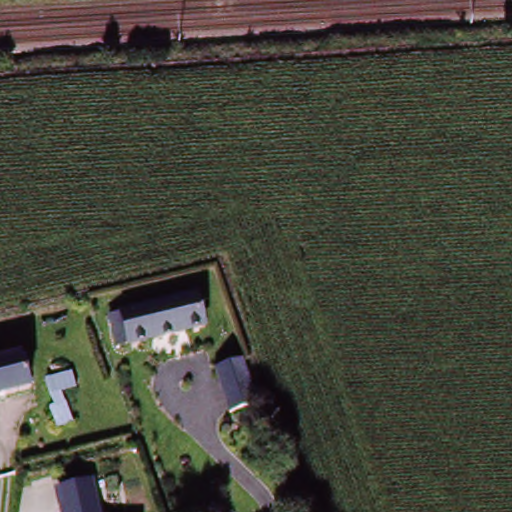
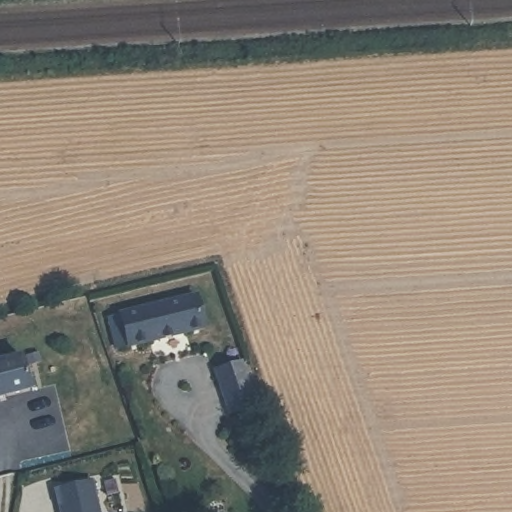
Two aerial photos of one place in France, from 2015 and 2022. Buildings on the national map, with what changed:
unchanged [(207,330),(121,351),(114,319),(200,295),(207,330)]
unchanged [(218,372),(245,362),(258,406),(233,413),(218,372)]
unchanged [(0,401),(0,367),(14,364),(25,396),(0,401)]
unchanged [(65,506),(68,506),(64,489),(96,481),(100,498),(104,512),(67,512),(65,506)]

